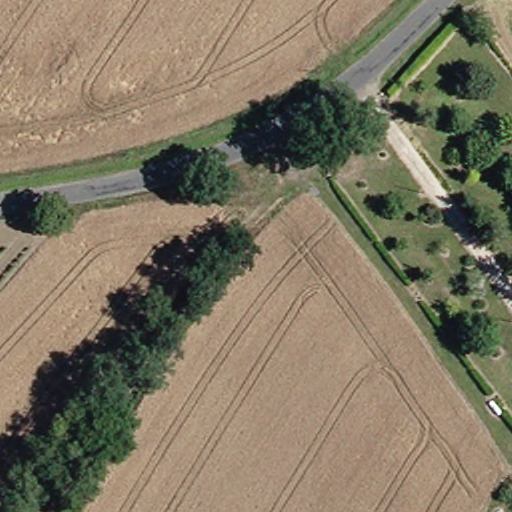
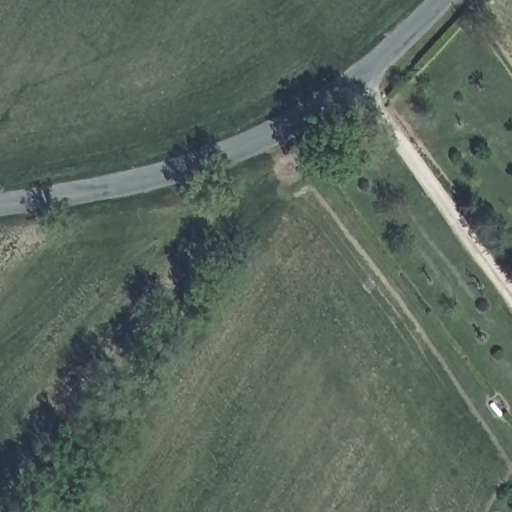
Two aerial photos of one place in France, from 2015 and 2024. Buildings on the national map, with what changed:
[]

